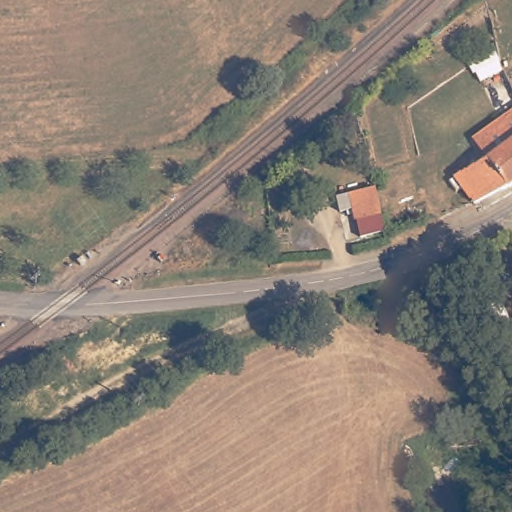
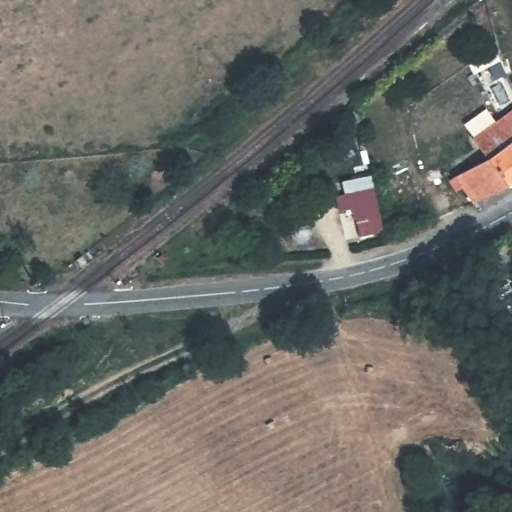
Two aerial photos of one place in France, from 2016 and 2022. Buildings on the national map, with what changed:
unchanged [(476,209),(457,181),(512,142),(512,183),(476,209)]
unchanged [(355,221),(351,189),(373,185),(379,216),(355,221)]
unchanged [(236,193),(270,225),(252,243),(216,210),(236,193)]

